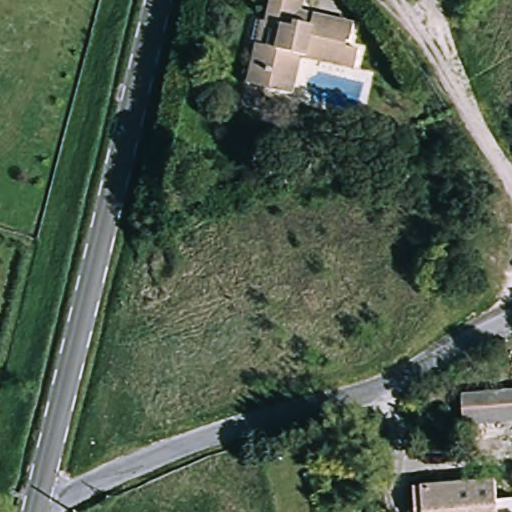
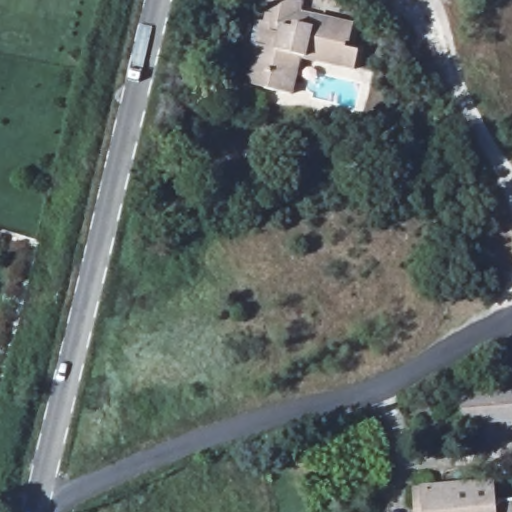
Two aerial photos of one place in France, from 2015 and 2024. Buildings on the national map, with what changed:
unchanged [(256,44),(261,24),(262,24),(268,0),(294,0),(302,2),(297,23),(313,27),(316,16),(348,24),(342,46),(354,49),(349,69),(296,56),(288,95),(261,89),(246,85),(251,66),(256,44)]
unchanged [(512,393),(512,423),(461,426),(459,397),(512,393)]
unchanged [(412,507),(411,490),(491,483),(490,502),(512,502),(512,512),(412,512),(412,507)]

